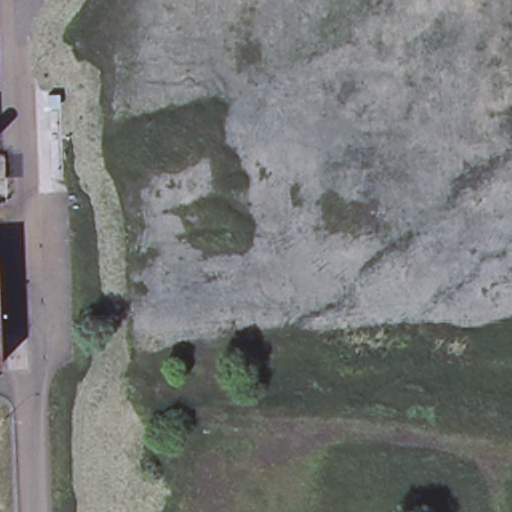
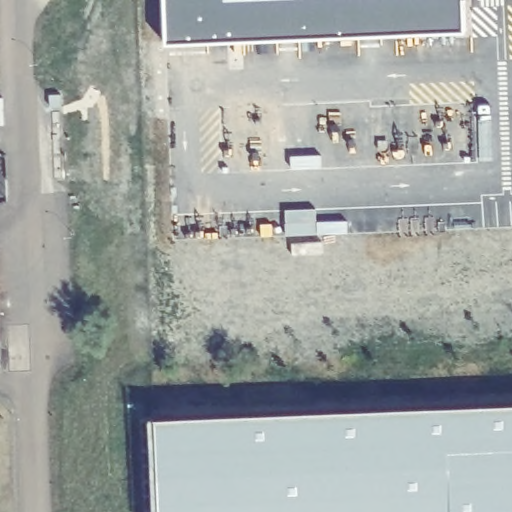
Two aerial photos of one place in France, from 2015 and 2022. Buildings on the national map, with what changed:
new [(165,43),(164,0),(217,0),(218,40),(165,43)]
new [(218,40),(217,0),(464,0),(465,31),(218,40)]
demolished [(6,366),(0,366),(0,253),(1,253),(6,366)]
new [(512,411),(512,512),(154,512),(148,423),(512,411)]

